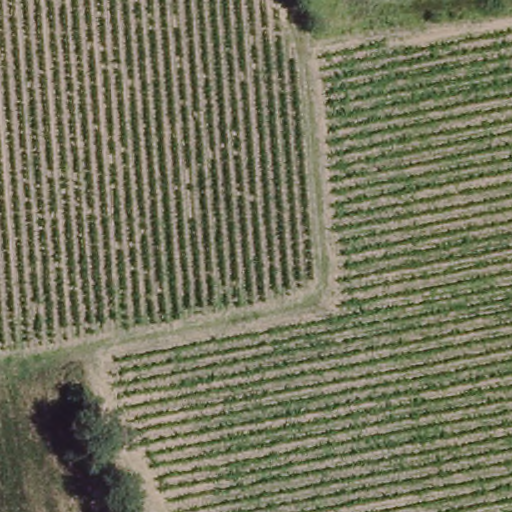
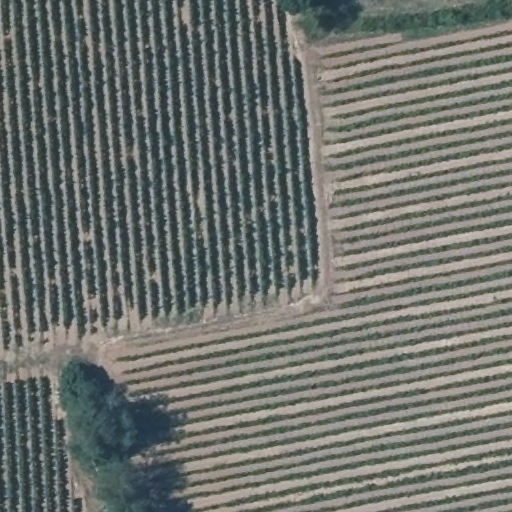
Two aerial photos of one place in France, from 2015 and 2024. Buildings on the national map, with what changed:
unchanged [(98,482),(73,458),(100,436),(118,472),(98,482)]

